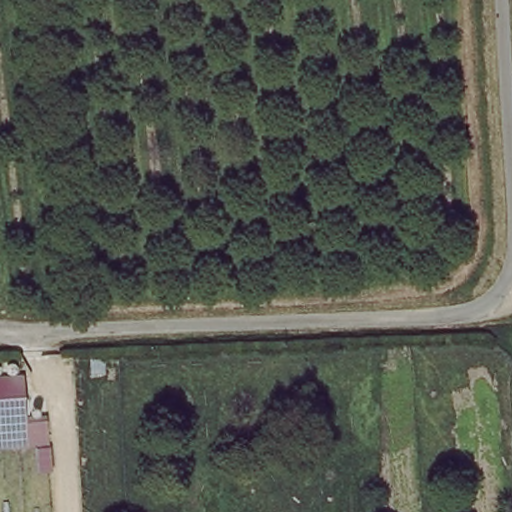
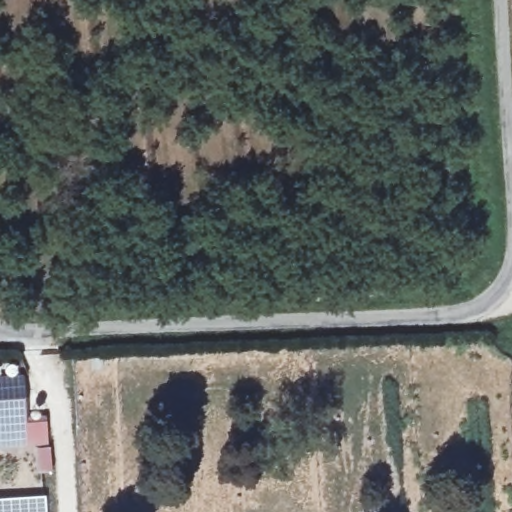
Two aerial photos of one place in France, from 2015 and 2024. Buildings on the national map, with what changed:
unchanged [(9,382),(12,431),(0,433),(0,383),(9,382)]
new [(46,512),(0,512),(0,499),(45,496),(46,512)]

